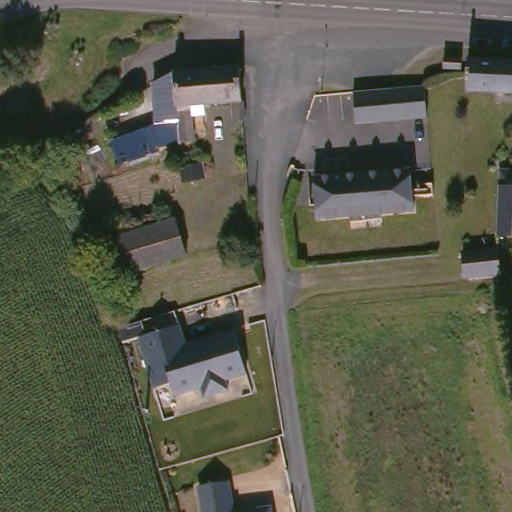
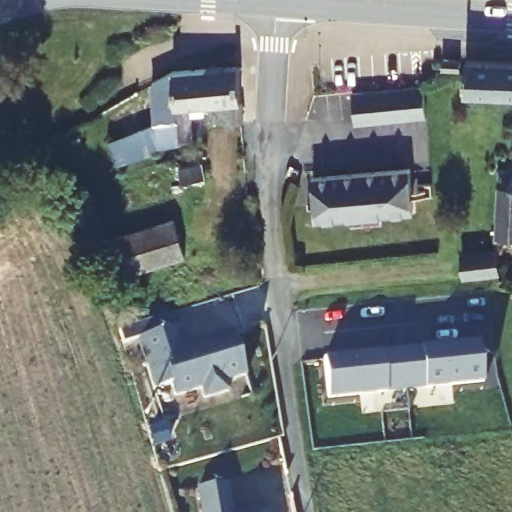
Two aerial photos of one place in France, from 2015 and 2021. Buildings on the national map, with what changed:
unchanged [(491,102),(491,92),(466,91),(467,70),(467,56),(512,58),(512,93),(503,93),(502,102),(491,102)]
unchanged [(233,101),(209,102),(206,71),(239,69),(249,127),(238,130),(233,101)]
unchanged [(180,103),(187,136),(172,140),(171,147),(127,162),(124,150),(135,147),(131,131),(164,120),(156,81),(170,74),(206,71),(209,102),(180,103)]
unchanged [(425,86),(425,112),(366,120),(363,89),(425,86)]
unchanged [(501,242),(501,234),(501,200),(501,165),(512,164),(512,251),(501,252),(501,242)]
unchanged [(412,207),(316,214),(313,172),(409,165),(412,207)]
unchanged [(188,172),(205,170),(208,182),(191,186),(188,172)]
unchanged [(110,234),(177,219),(186,253),(121,270),(116,251),(110,234)]
unchanged [(498,245),(504,272),(467,279),(462,251),(498,245)]
unchanged [(153,337),(194,325),(201,350),(218,345),(216,340),(248,332),(260,376),(239,382),(242,392),(217,398),(215,388),(188,396),(185,383),(167,388),(153,337)]
new [(483,342),(489,381),(334,406),(328,366),(483,342)]
unchanged [(232,508),(269,502),(271,512),(203,512),(197,480),(226,476),(232,508)]

